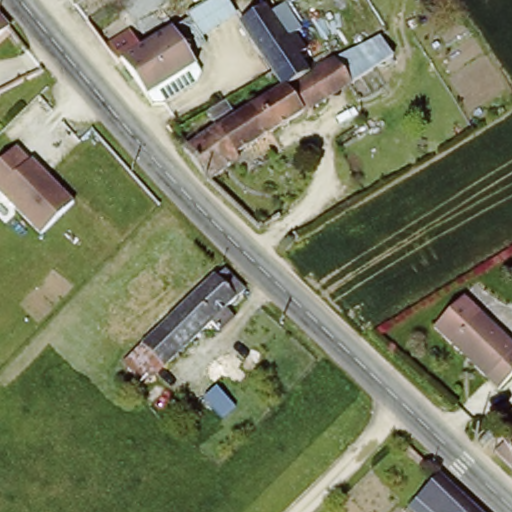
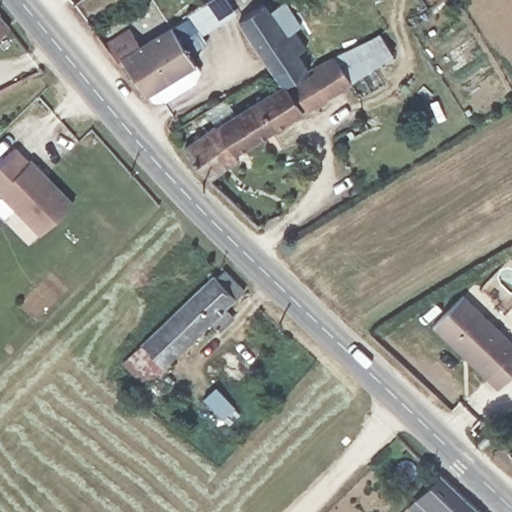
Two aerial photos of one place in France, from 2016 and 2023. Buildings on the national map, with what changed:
unchanged [(238,0),(239,2),(198,27),(206,40),(193,47),(191,42),(183,47),(196,66),(147,95),(123,58),(193,11),(191,7),(203,0),(238,0)]
unchanged [(277,0),(284,0),(304,30),(296,36),(324,75),(291,95),(279,76),(242,25),(266,7),(277,0)]
unchanged [(0,12),(14,28),(0,40),(0,12)]
unchanged [(324,75),(380,40),(393,61),(356,85),(229,163),(233,168),(208,186),(183,155),(209,139),(212,142),(291,95),(324,75)]
unchanged [(73,199),(39,231),(0,189),(0,164),(19,143),(73,199)]
unchanged [(141,384),(123,367),(139,352),(216,277),(223,285),(229,278),(245,293),(225,314),(231,320),(215,336),(207,327),(161,373),(152,382),(141,384)]
unchanged [(469,302),(512,342),(512,387),(506,393),(441,333),(469,302)]
unchanged [(231,412),(217,427),(195,406),(211,391),(231,412)]
unchanged [(512,433),(512,453),(503,437),(512,433)]
unchanged [(414,508),(445,476),(482,512),(417,512),(414,508)]

